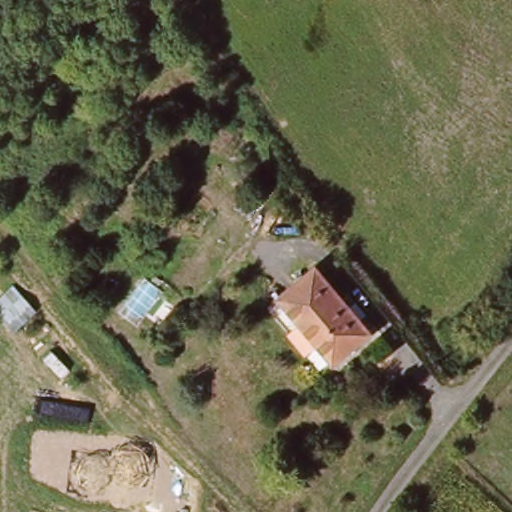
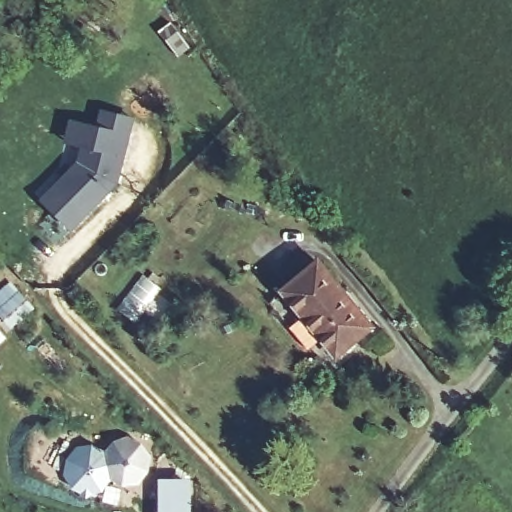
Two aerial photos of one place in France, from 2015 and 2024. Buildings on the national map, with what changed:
new [(71,231),(41,199),(77,161),(81,147),(64,142),(69,121),(97,125),(100,112),(135,118),(118,185),(108,196),(71,231)]
unchanged [(382,326),(345,356),(292,291),(325,261),(382,326)]
unchanged [(0,316),(0,291),(12,281),(35,309),(11,328),(0,316)]
new [(127,436),(142,442),(153,456),(148,472),(140,484),(122,486),(112,480),(103,491),(86,497),(73,488),(65,473),(67,459),(78,447),(92,443),(105,450),(114,440),(127,436)]
new [(157,477),(192,477),(192,512),(157,512),(157,477)]

